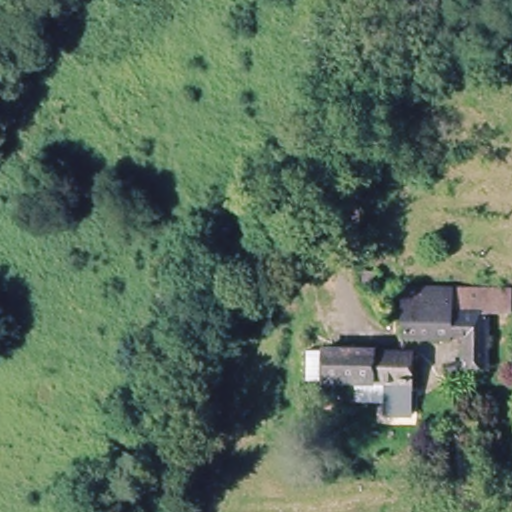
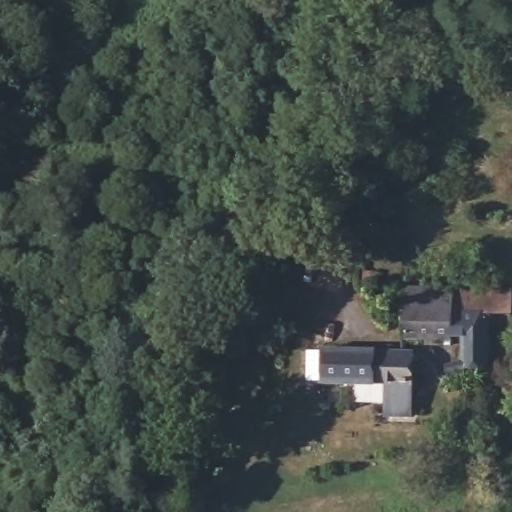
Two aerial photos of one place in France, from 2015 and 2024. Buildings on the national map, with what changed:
unchanged [(443,389),(441,374),(459,369),(460,347),(403,344),(406,293),(449,294),(448,323),(485,325),(485,378),(460,378),(460,387),(443,389)]
unchanged [(413,402),(392,402),(392,386),(350,384),(325,382),(327,352),(351,354),(414,360),(413,402)]

